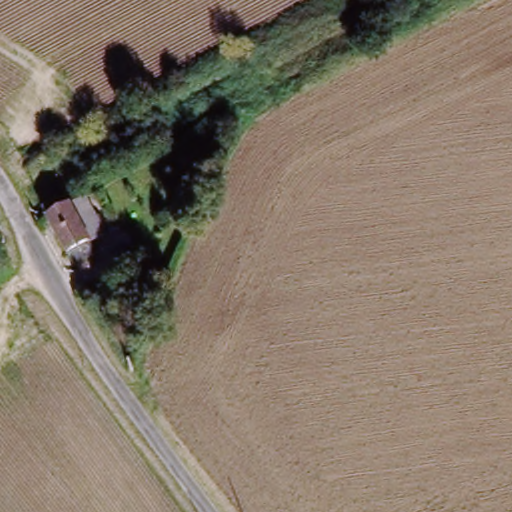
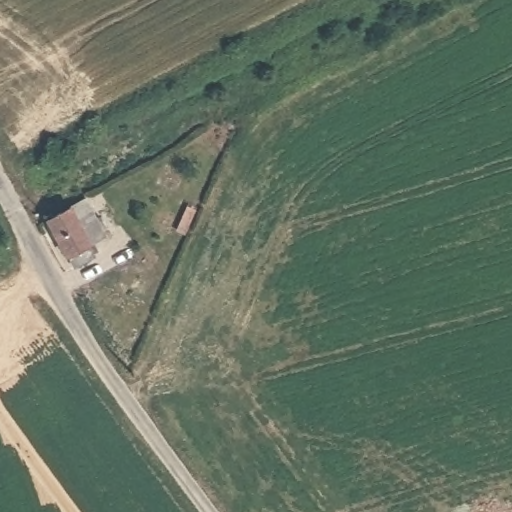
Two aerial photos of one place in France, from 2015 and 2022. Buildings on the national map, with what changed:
unchanged [(95,265),(77,273),(71,261),(67,263),(49,224),(72,213),(89,204),(91,208),(96,218),(108,241),(92,250),(89,251),(95,265)]

